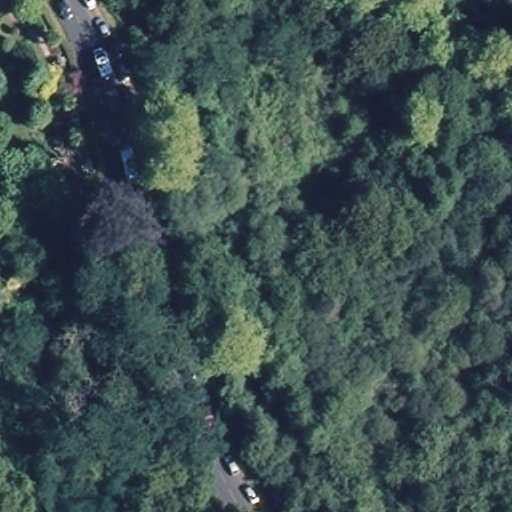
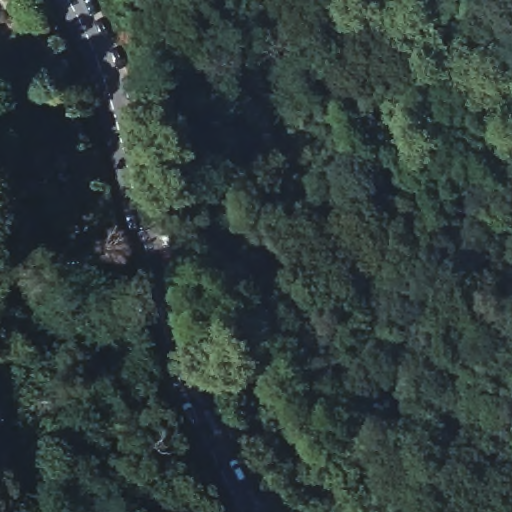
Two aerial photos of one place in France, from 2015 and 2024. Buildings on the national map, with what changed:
[]

